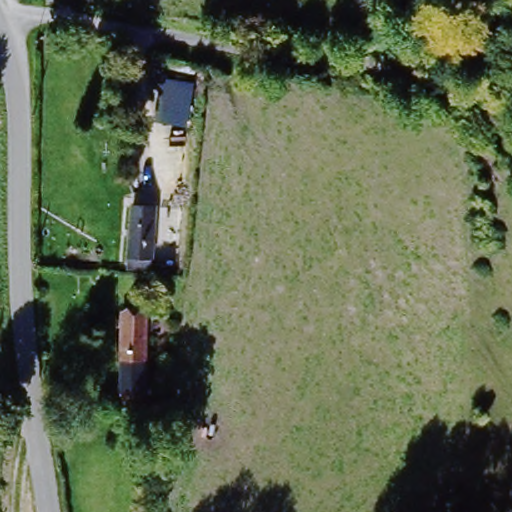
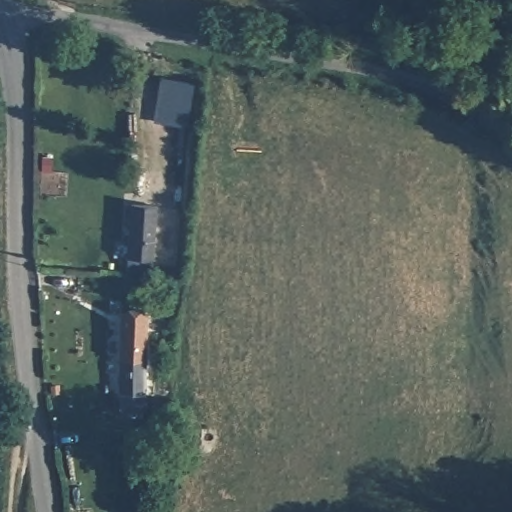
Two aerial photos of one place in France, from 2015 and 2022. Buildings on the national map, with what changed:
unchanged [(148,119),(150,109),(153,77),(185,81),(181,113),(180,123),(148,119)]
unchanged [(131,255),(135,204),(155,205),(151,257),(131,255)]
unchanged [(152,306),(144,395),(117,395),(127,304),(152,306)]

